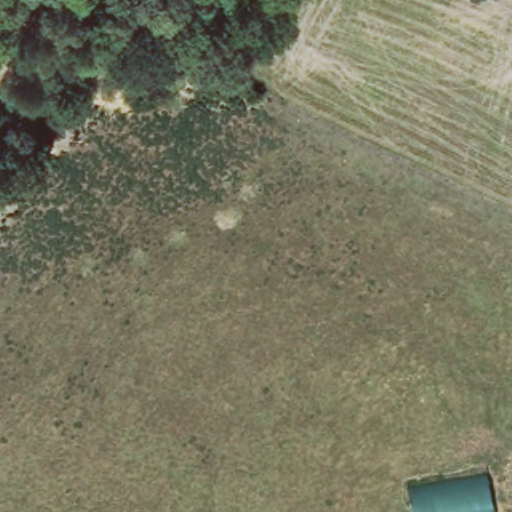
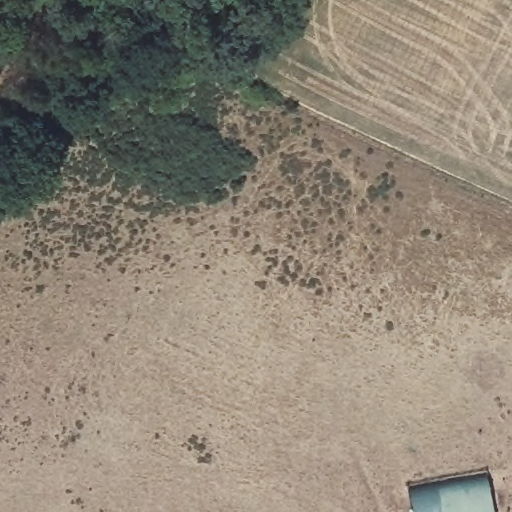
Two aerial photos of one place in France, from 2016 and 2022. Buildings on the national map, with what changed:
unchanged [(410,489),(487,476),(493,512),(415,512),(410,489)]

